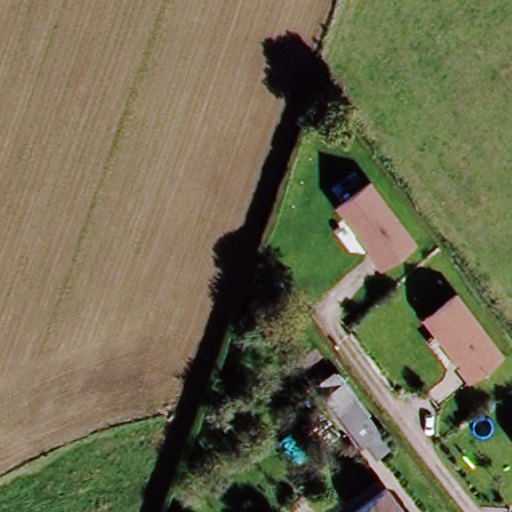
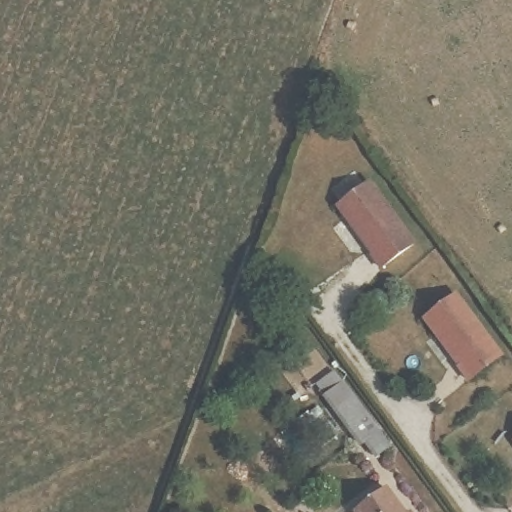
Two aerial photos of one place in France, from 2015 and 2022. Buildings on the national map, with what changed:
unchanged [(332,207),(368,180),(415,243),(380,272),(332,207)]
unchanged [(424,321),(454,295),(504,360),(470,380),(424,321)]
unchanged [(355,512),(353,510),(380,488),(400,512),(355,512)]

